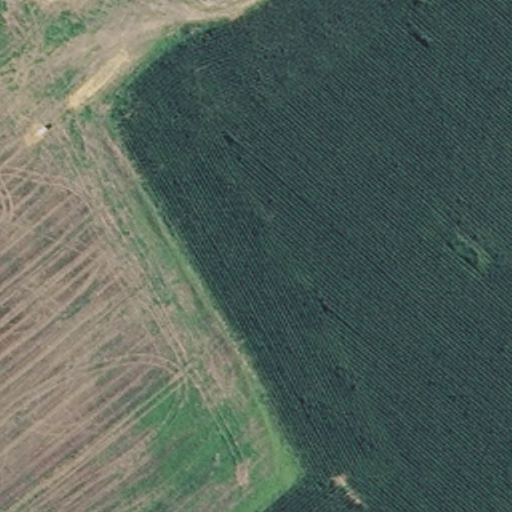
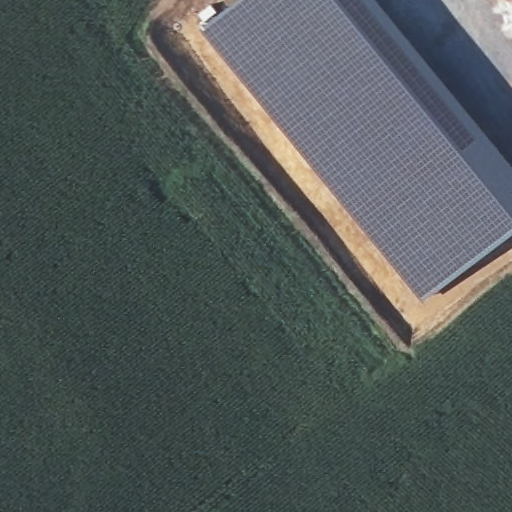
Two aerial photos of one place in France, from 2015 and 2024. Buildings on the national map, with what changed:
new [(218,14),(236,0),(379,0),(397,19),(512,159),(512,228),(422,300),(219,53),(199,28),(218,14)]

